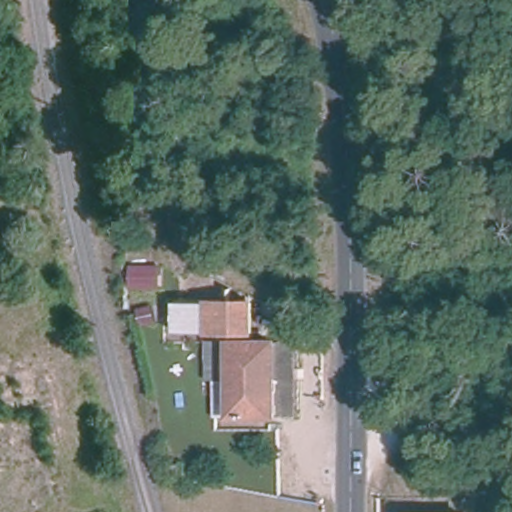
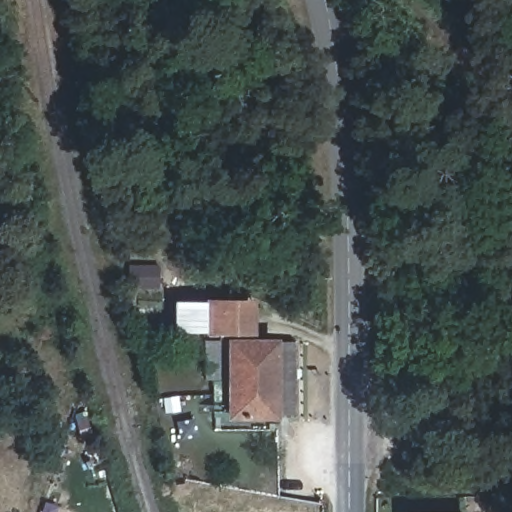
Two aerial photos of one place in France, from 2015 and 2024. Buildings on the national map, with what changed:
unchanged [(158,288),(128,290),(126,265),(157,263),(158,288)]
unchanged [(178,300),(243,302),(242,330),(178,329),(178,300)]
unchanged [(295,342),(295,413),(217,413),(216,380),(231,380),(231,342),(295,342)]
unchanged [(397,512),(397,511),(442,512),(397,512)]

